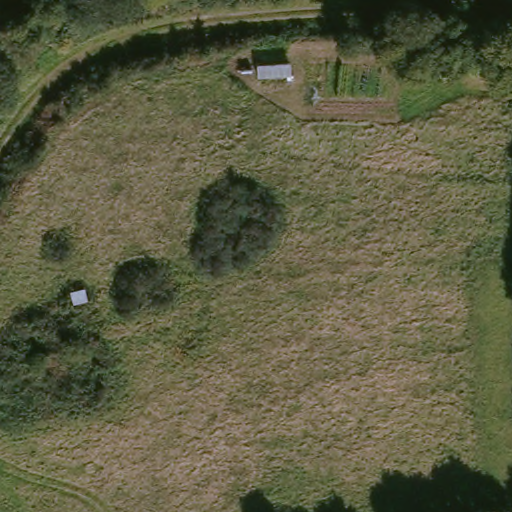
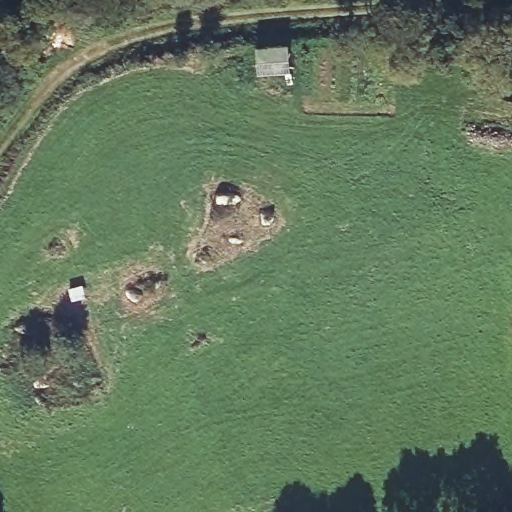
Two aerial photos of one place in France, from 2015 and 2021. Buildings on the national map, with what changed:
[]

